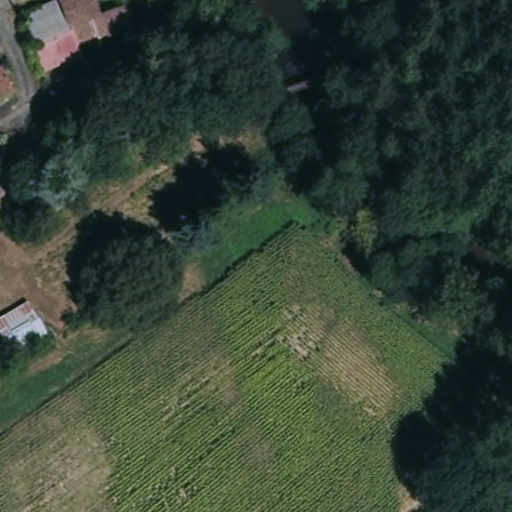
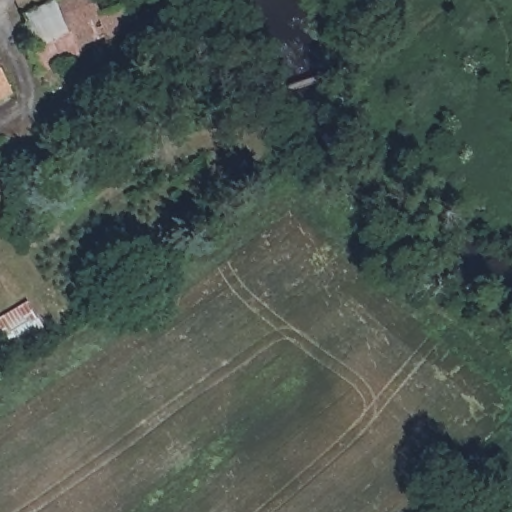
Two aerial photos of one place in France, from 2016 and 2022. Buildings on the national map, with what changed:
unchanged [(29,22),(73,0),(116,0),(128,24),(84,44),(74,48),(78,56),(46,70),(26,23),(29,22)]
unchanged [(4,74),(16,98),(0,107),(0,76),(4,74)]
unchanged [(27,304),(52,344),(17,365),(0,336),(0,321),(27,304)]

